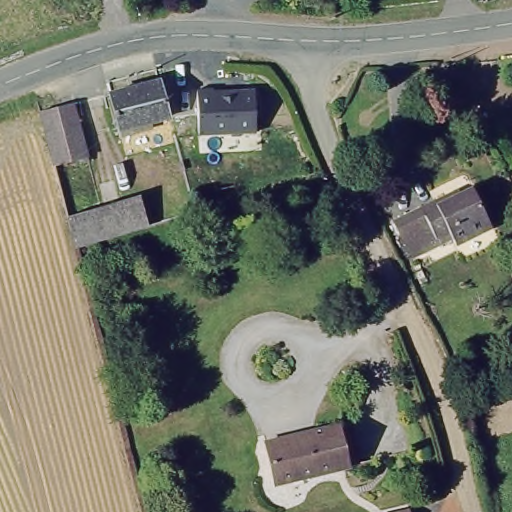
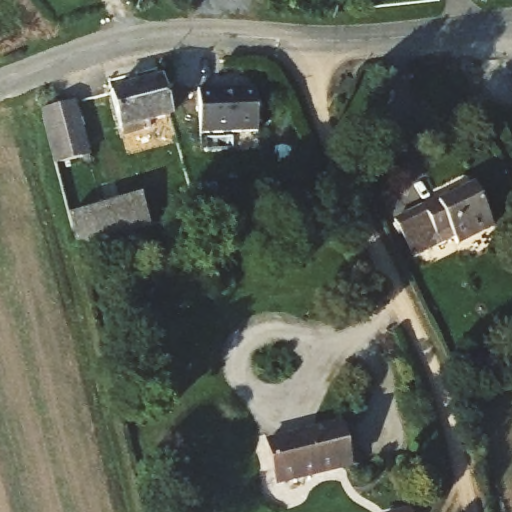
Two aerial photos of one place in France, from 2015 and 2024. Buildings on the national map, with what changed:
unchanged [(160,70),(169,101),(193,94),(197,111),(174,117),(172,110),(122,126),(110,85),(160,70)]
unchanged [(254,89),(257,131),(202,134),(200,90),(254,89)]
unchanged [(74,92),(91,162),(54,171),(36,102),(74,92)]
unchanged [(457,188),(459,194),(477,186),(495,225),(457,242),(452,231),(414,247),(399,214),(457,188)]
unchanged [(136,197),(145,227),(75,249),(67,219),(136,197)]
unchanged [(336,426),(348,423),(357,464),(346,467),(277,485),(265,442),(335,425),(336,426)]
unchanged [(407,503),(409,512),(383,512),(382,508),(407,503)]

